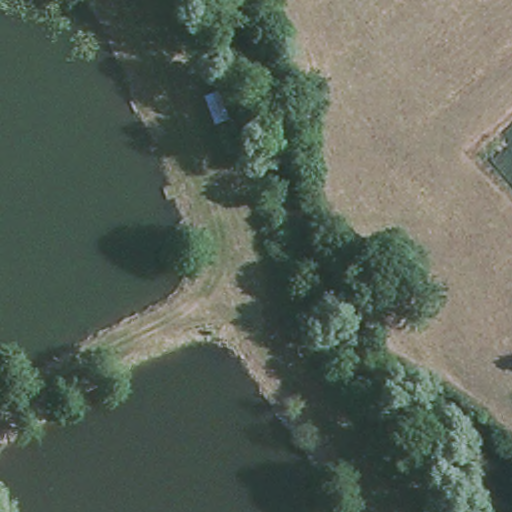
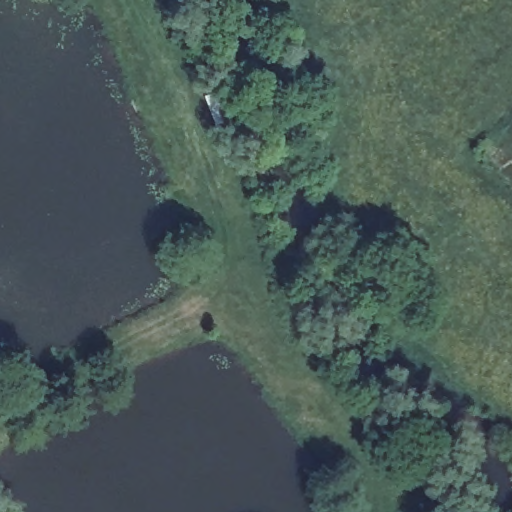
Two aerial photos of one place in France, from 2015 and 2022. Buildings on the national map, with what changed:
[]

